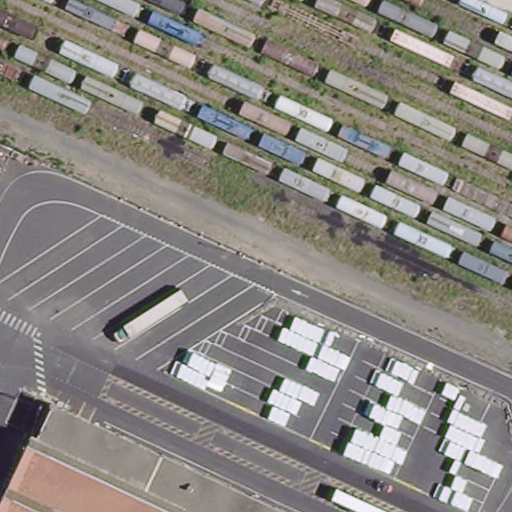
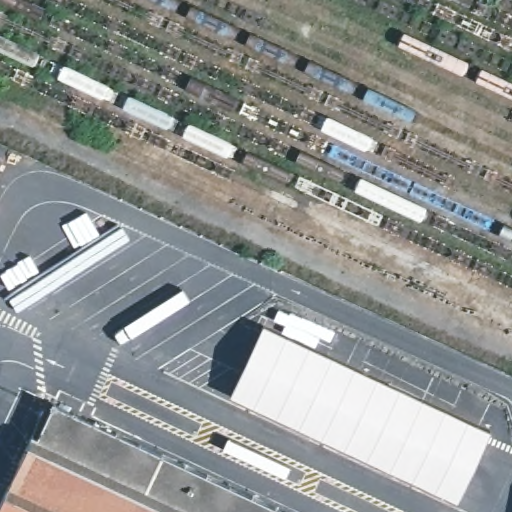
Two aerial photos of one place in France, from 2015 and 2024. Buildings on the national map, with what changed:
new [(490,431),(457,502),(230,395),(264,326),(490,431)]
unchanged [(52,404),(283,512),(1,512),(52,404)]

